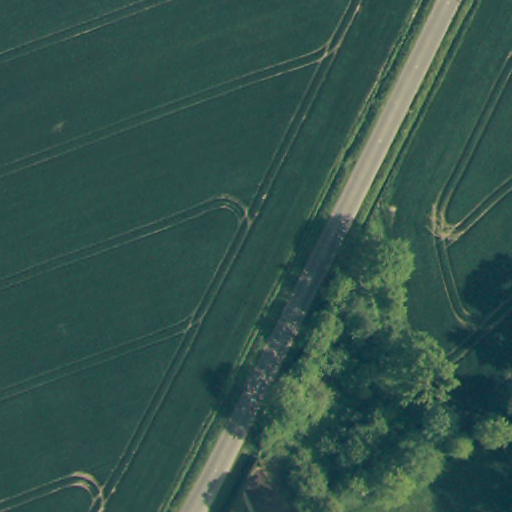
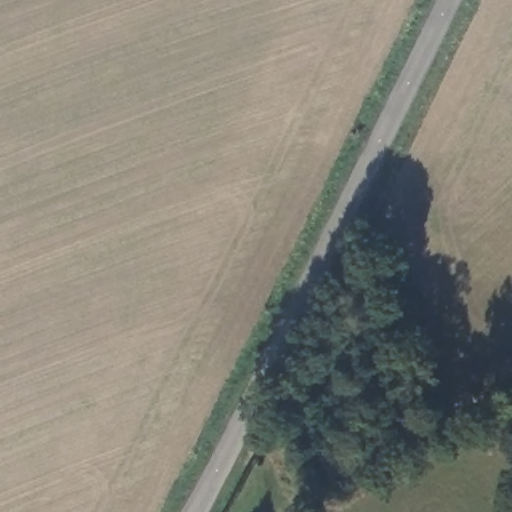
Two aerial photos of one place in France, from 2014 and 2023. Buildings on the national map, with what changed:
[]

